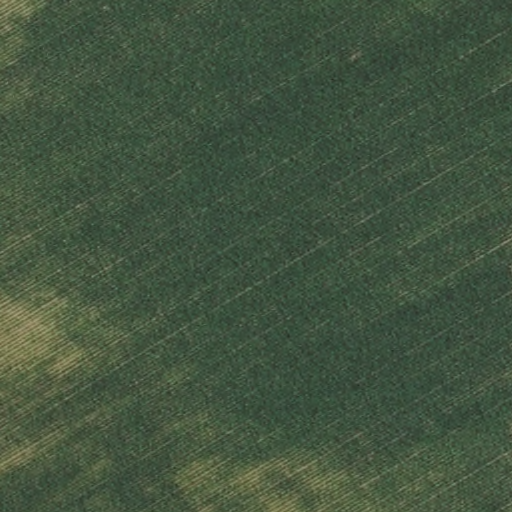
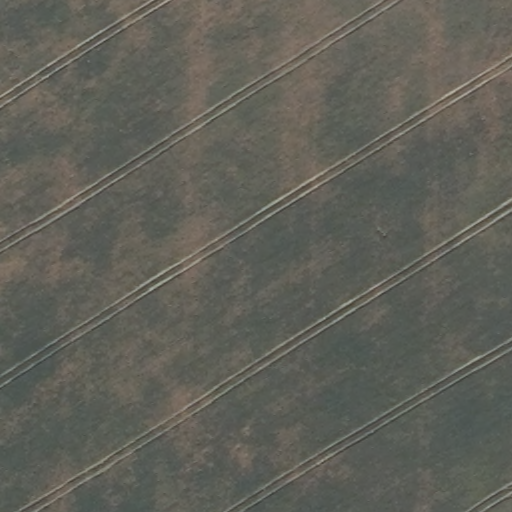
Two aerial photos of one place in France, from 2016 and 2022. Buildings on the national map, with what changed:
[]

